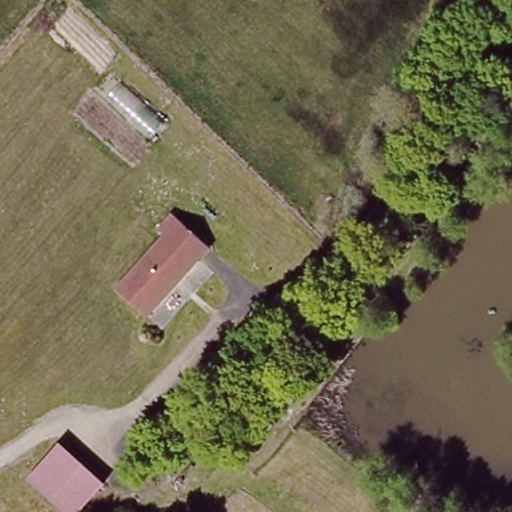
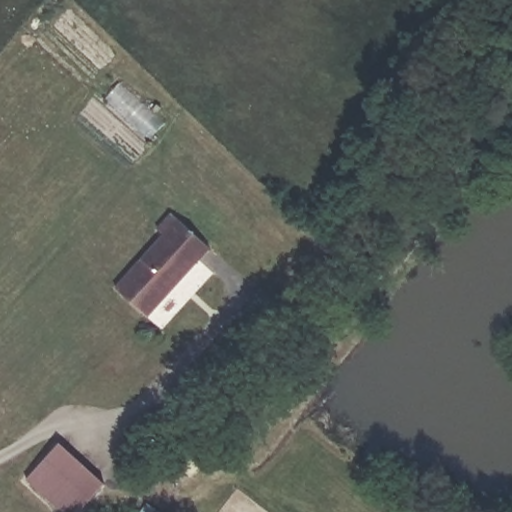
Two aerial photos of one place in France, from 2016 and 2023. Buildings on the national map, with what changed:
unchanged [(163,233),(155,227),(170,211),(211,247),(149,316),(114,285),(163,233)]
unchanged [(60,441),(104,483),(75,512),(61,512),(25,478),(60,441)]

